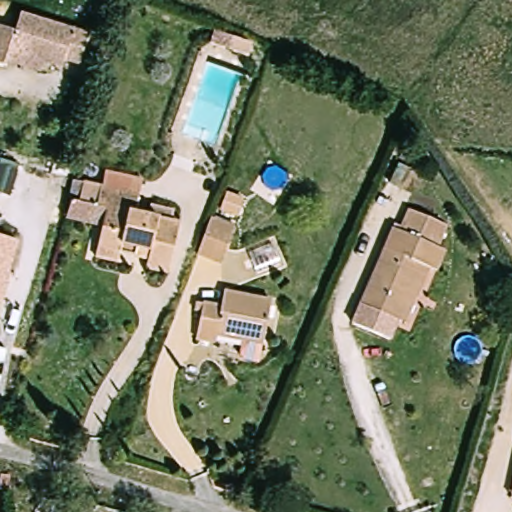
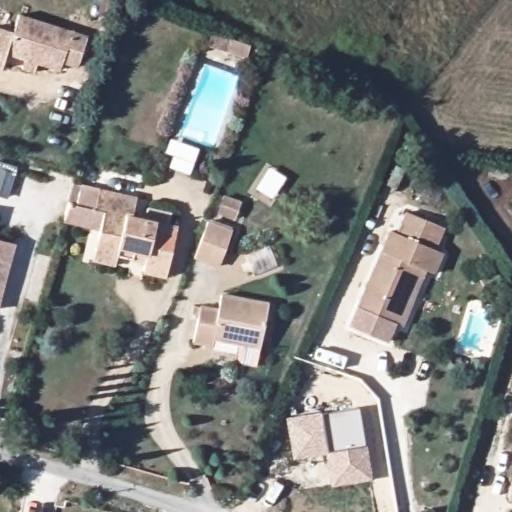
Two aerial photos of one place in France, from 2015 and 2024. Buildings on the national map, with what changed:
unchanged [(1,67),(4,54),(15,14),(90,35),(81,65),(62,60),(59,69),(47,66),(44,79),(1,67)]
unchanged [(97,234),(63,228),(72,183),(100,187),(104,173),(143,181),(136,206),(172,212),(168,223),(178,226),(166,280),(142,277),(144,265),(116,259),(115,269),(89,264),(97,234)]
unchanged [(410,209),(458,231),(414,338),(406,334),(399,348),(357,330),(410,209)]
unchanged [(213,261),(198,255),(211,221),(235,230),(226,251),(222,264),(213,261)]
unchanged [(21,246),(0,309),(0,239),(21,246)]
unchanged [(241,350),(242,343),(214,340),(212,356),(190,353),(195,316),(216,318),(218,306),(266,311),(261,353),(241,350)]
new [(366,444),(371,477),(330,486),(325,452),(293,458),(286,418),(358,408),(364,444),(366,444)]
unchanged [(512,491),(512,504),(509,503),(512,491)]

